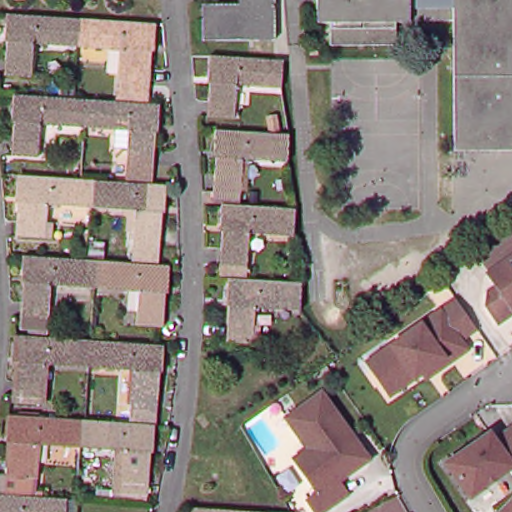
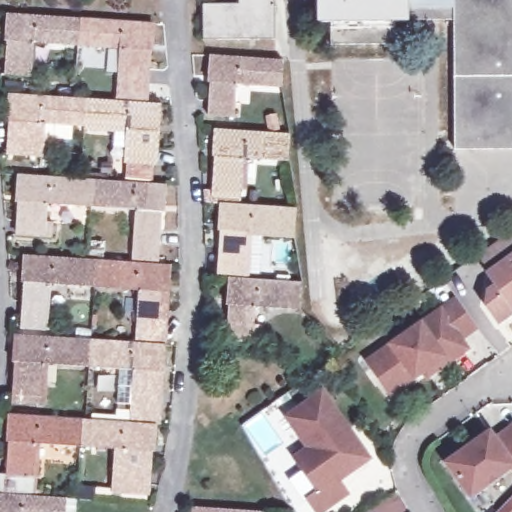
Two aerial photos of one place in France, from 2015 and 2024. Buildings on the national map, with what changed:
unchanged [(278,37),(210,37),(210,3),(244,4),(244,0),(279,0),(278,37)]
unchanged [(400,25),(400,47),(337,47),(337,25),(323,24),(323,0),(512,0),(512,153),(460,154),(460,25),(440,25),(415,25),(400,25)]
unchanged [(157,23),(156,49),(153,49),(151,87),(125,86),(127,47),(38,41),(37,69),(46,70),(46,75),(11,73),(13,39),(10,39),(12,14),(85,18),(157,23)]
unchanged [(283,60),(280,85),(237,83),(235,116),(209,114),(212,80),(208,80),(210,54),(283,60)]
unchanged [(163,130),(160,130),(157,162),(132,161),(134,127),(45,121),(43,155),(18,152),(20,119),(17,119),(19,93),(65,97),(65,86),(80,86),(80,97),(91,98),(165,103),(165,104),(163,130)]
unchanged [(275,129),(272,114),(281,113),(283,128),(275,129)]
unchanged [(283,132),(293,133),(291,160),(247,158),(245,197),(220,195),(223,155),(220,155),(222,128),(283,132)]
unchanged [(168,210),(167,209),(165,243),(138,242),(140,208),(51,201),(50,221),(59,221),(58,236),(25,233),(27,200),(25,199),(26,174),(86,178),(98,179),(171,184),(168,210)]
unchanged [(288,206),(300,207),(300,212),(298,233),(254,231),(250,274),(227,273),(230,229),(227,228),(227,202),(288,206)]
unchanged [(172,291),(169,290),(167,325),(142,322),(143,289),(55,282),(53,316),(27,314),(30,281),(27,280),(28,254),(93,259),(101,259),(173,265),(172,291)]
unchanged [(485,292),(492,292),(493,285),(485,273),(512,255),(512,311),(495,322),(483,305),(485,292)]
unchanged [(295,281),(307,281),(305,307),(260,305),(257,340),(233,338),(235,303),(232,303),(234,277),(295,281)]
unchanged [(388,340),(437,306),(451,296),(472,324),(457,334),(464,344),(430,368),(427,362),(387,390),(369,364),(365,357),(388,340)]
unchanged [(167,369),(164,369),(161,416),(136,415),(138,367),(50,361),(47,401),(22,399),(25,360),(22,360),(23,334),(168,343),(167,369)]
unchanged [(346,430),(340,434),(361,463),(337,480),(345,493),(319,512),(315,512),(307,499),(315,492),(292,459),(307,448),(285,418),(319,392),(346,430)]
unchanged [(0,492),(2,484),(5,484),(6,473),(12,473),(15,440),(12,439),(15,413),(87,418),(90,418),(160,423),(158,450),(155,450),(152,492),(120,491),(122,446),(40,441),(38,475),(40,476),(39,494),(70,496),(69,512),(0,512),(0,492)]
unchanged [(500,445),(512,437),(512,466),(472,493),(450,462),(492,433),(500,445)]
unchanged [(187,512),(187,507),(259,511),(259,512),(187,512)]
unchanged [(511,512),(508,512),(510,510),(511,512)]

